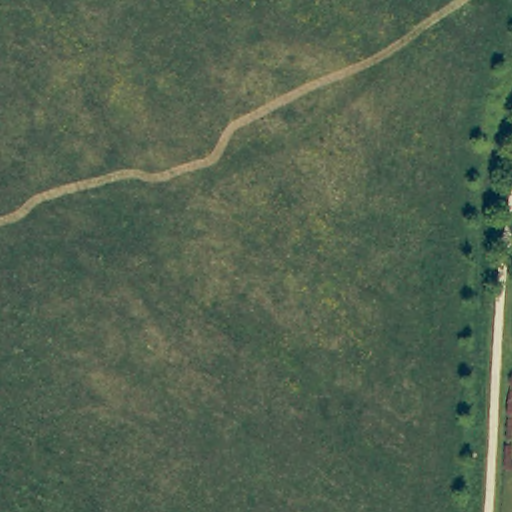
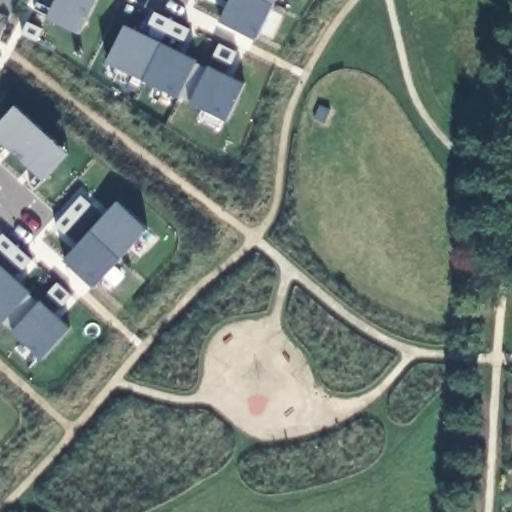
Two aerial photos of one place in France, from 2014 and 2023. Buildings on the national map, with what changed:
new [(48,18),(57,0),(96,0),(79,34),(48,18)]
new [(219,23),(230,0),(275,0),(255,40),(219,23)]
new [(224,121),(178,98),(106,64),(126,26),(195,61),(244,85),(224,121)]
new [(0,143),(0,123),(15,107),(67,154),(44,182),(0,143)]
new [(147,229),(92,289),(62,259),(117,202),(147,229)]
new [(2,323),(0,321),(0,266),(29,292),(40,300),(69,331),(42,358),(2,323)]

